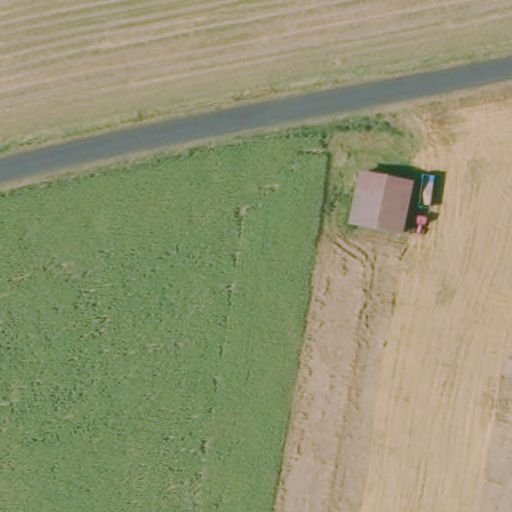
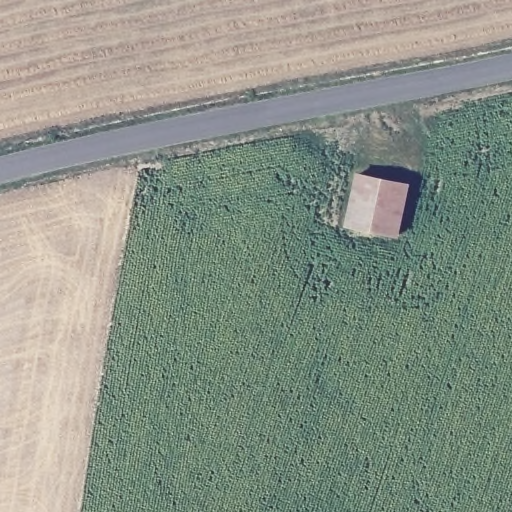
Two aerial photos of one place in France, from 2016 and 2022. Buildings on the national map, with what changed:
unchanged [(367,176),(418,186),(409,239),(354,225),(367,176)]

